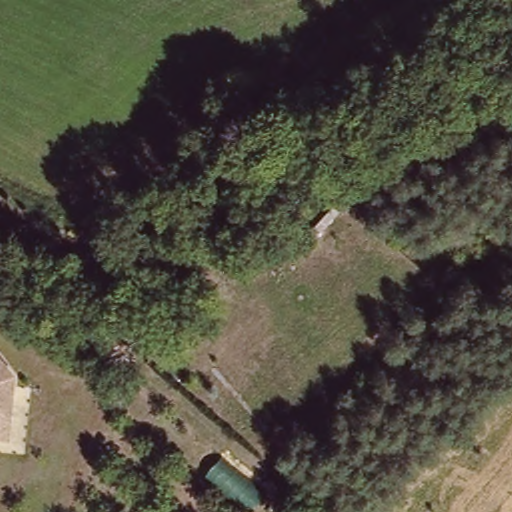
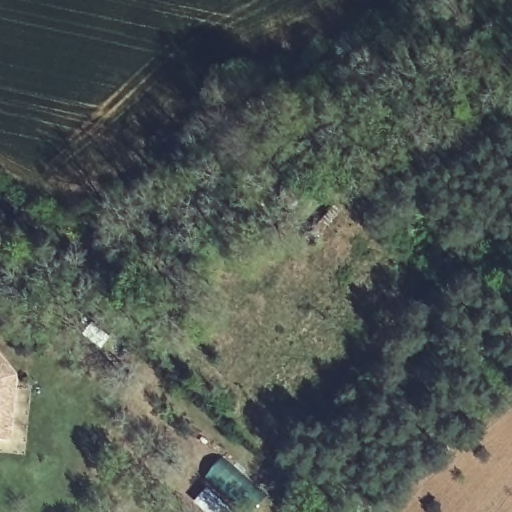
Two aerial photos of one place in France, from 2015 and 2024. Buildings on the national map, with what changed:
unchanged [(8,442),(0,441),(0,359),(16,379),(8,442)]

